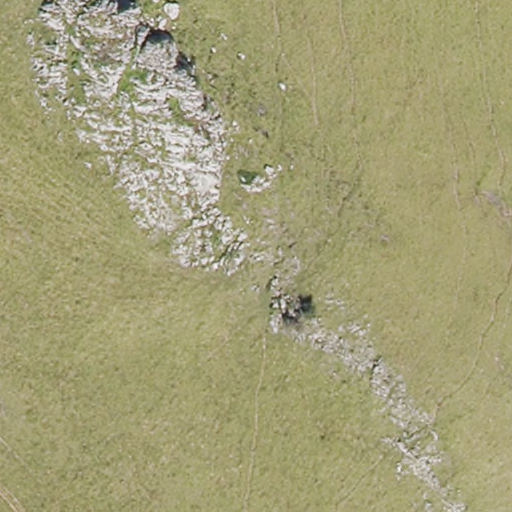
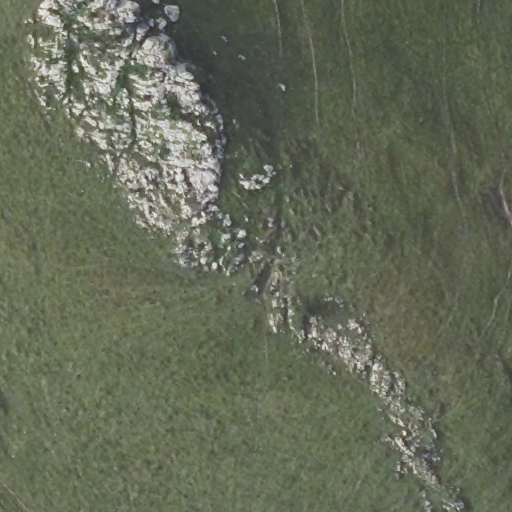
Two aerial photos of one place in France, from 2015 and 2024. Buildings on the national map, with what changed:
[]

